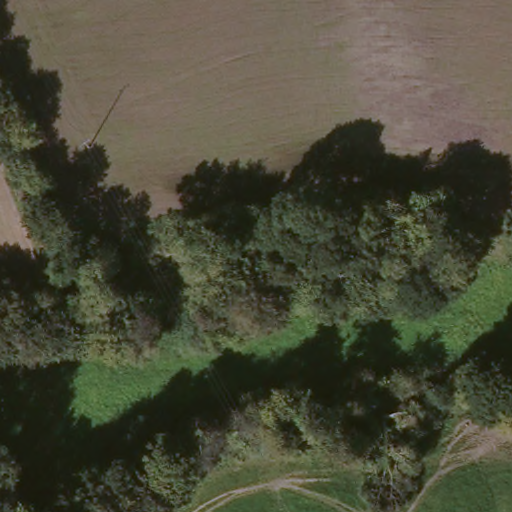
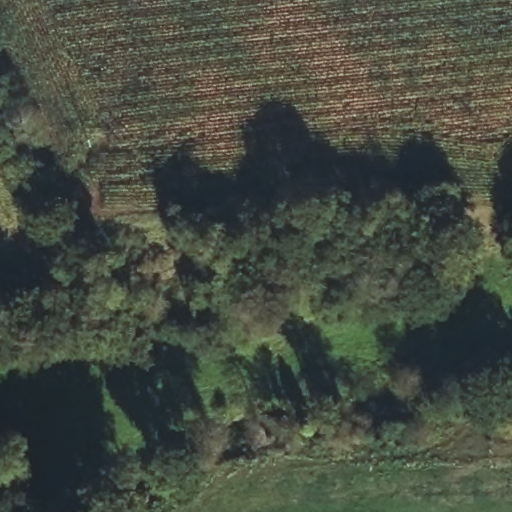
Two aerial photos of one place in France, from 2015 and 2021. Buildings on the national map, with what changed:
[]

